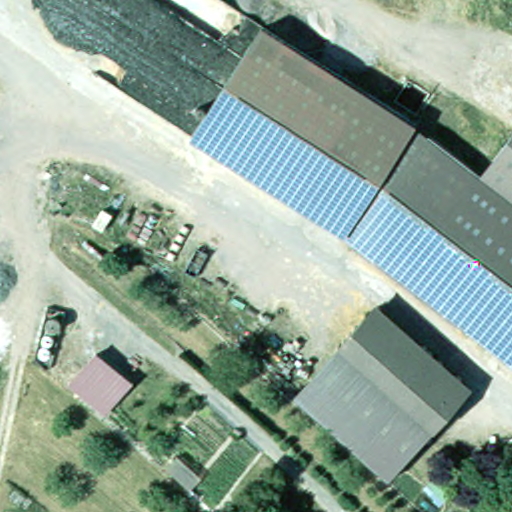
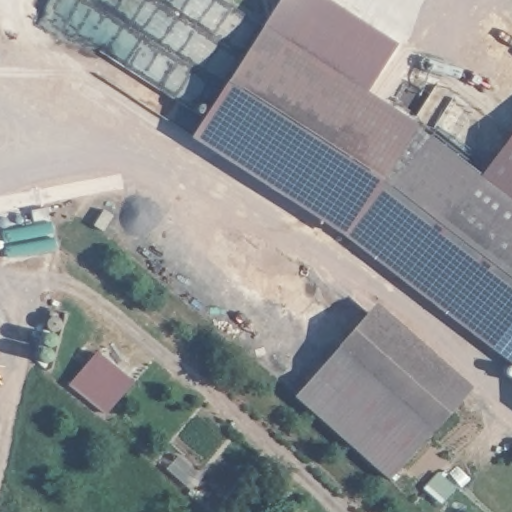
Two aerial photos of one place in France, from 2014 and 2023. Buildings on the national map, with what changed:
new [(276,0),(325,0),(397,45),(363,102),(248,37),(276,0)]
unchanged [(248,37),(408,128),(344,242),(246,185),(186,151),(191,142),(248,37)]
unchanged [(351,247),(421,135),(462,164),(472,172),(474,173),(512,202),(512,365),(351,247)]
unchanged [(485,178),(512,142),(512,198),(485,178)]
unchanged [(313,378),(327,361),(343,341),(369,309),(464,388),(438,420),(420,441),(404,460),(396,470),(378,456),(356,439),(301,393),(303,391),(313,378)]
unchanged [(133,383),(106,414),(66,381),(92,351),(133,383)]
unchanged [(454,491),(442,507),(427,495),(439,479),(454,491)]

